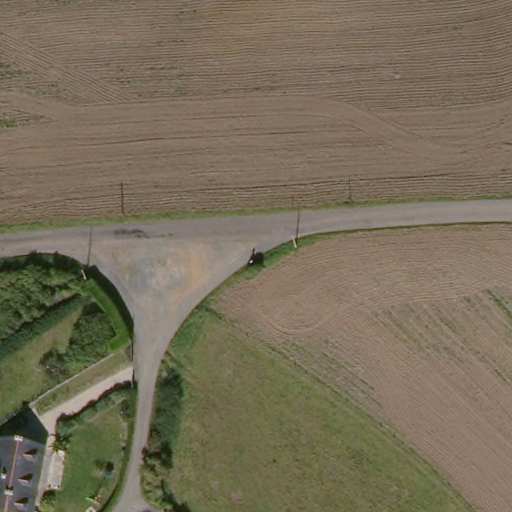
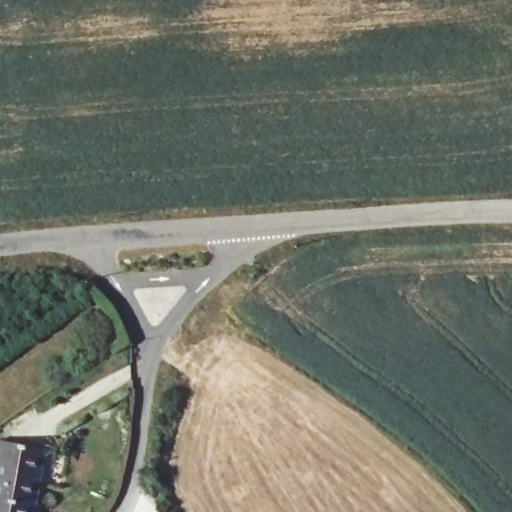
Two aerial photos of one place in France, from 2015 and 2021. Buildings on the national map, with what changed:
unchanged [(3,508),(14,432),(60,437),(49,512),(31,512),(3,508)]

